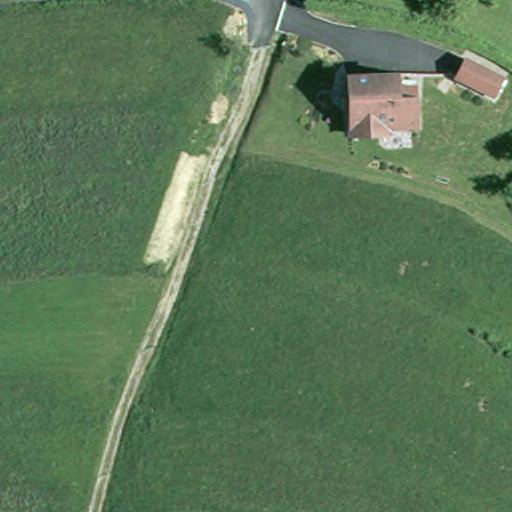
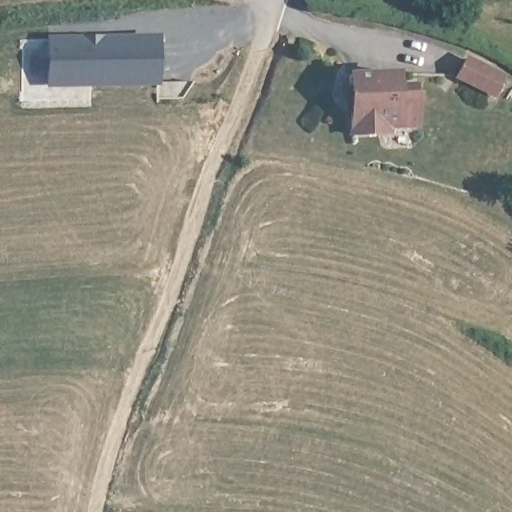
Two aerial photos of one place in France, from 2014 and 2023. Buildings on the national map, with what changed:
new [(156,37),(157,82),(48,83),(47,38),(156,37)]
unchanged [(495,89),(460,72),(467,55),(504,73),(495,89)]
unchanged [(347,133),(345,74),(392,71),(392,86),(408,85),(409,92),(412,124),(382,126),(382,131),(372,132),(347,133)]
new [(193,83),(182,101),(155,101),(155,84),(193,83)]

